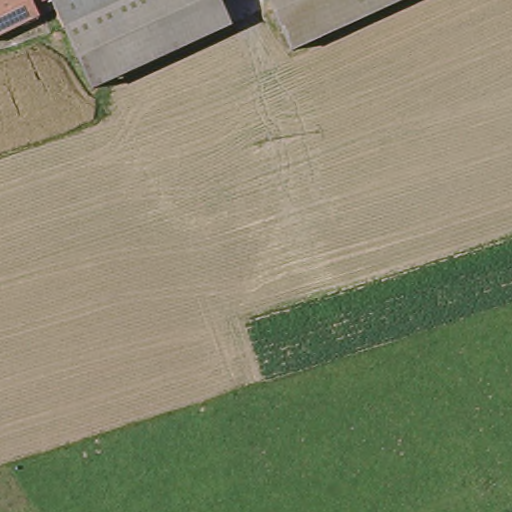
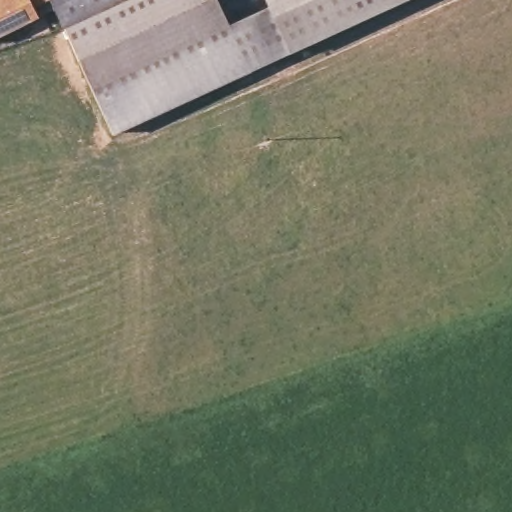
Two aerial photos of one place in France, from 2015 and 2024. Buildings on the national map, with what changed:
unchanged [(45,15),(0,37),(0,0),(129,0),(67,28),(57,2),(43,9),(45,15)]
unchanged [(129,0),(219,0),(232,27),(95,89),(68,31),(67,28),(129,0)]
unchanged [(292,50),(268,0),(405,0),(292,50)]
new [(113,133),(95,89),(232,27),(230,23),(270,4),(292,50),(113,133)]

